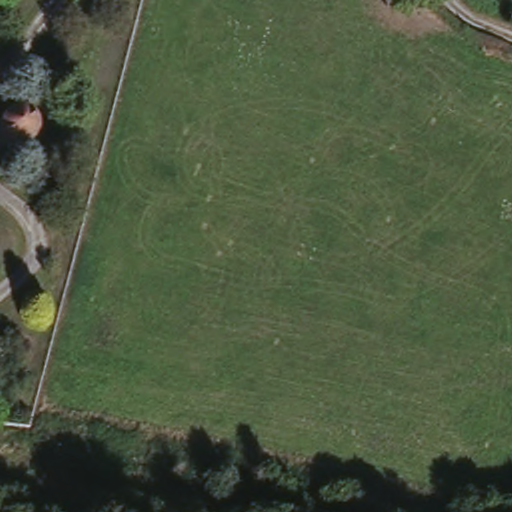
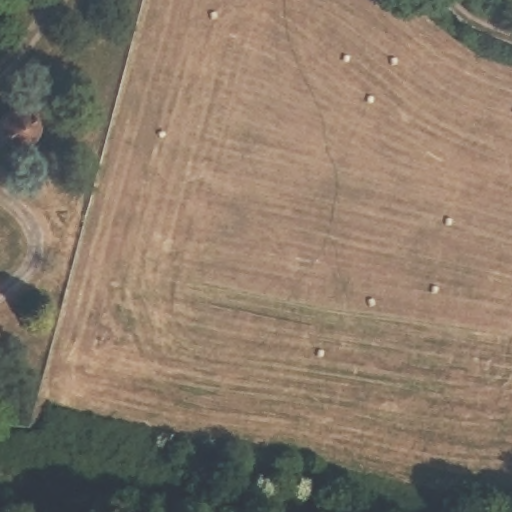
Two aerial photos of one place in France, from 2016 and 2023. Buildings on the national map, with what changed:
unchanged [(0,119),(4,112),(11,106),(19,105),(26,107),(32,109),(39,115),(40,122),(40,129),(36,138),(32,142),(24,144),(16,145),(7,141),(2,132),(0,119)]

